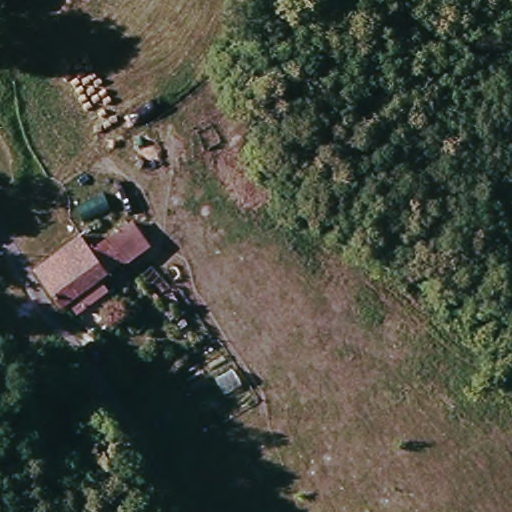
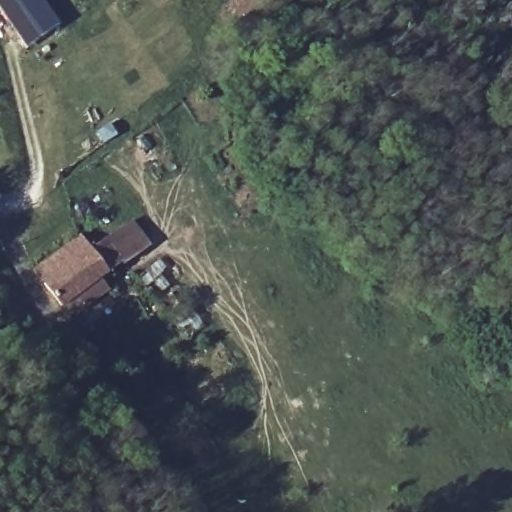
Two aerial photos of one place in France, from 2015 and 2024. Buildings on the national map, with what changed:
new [(0,0),(38,0),(56,27),(26,47),(0,9),(0,0)]
unchanged [(45,268),(91,235),(101,250),(133,227),(149,250),(70,305),(45,268)]

